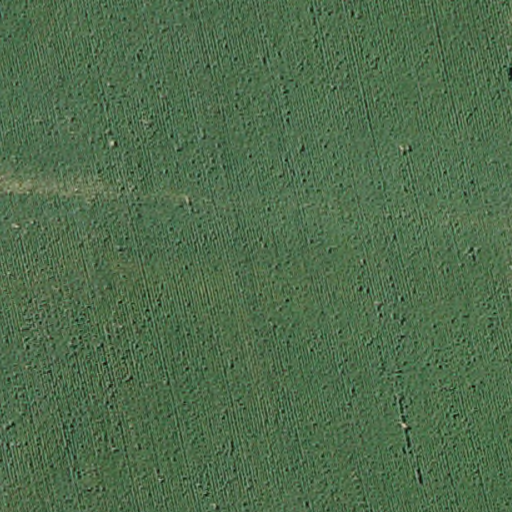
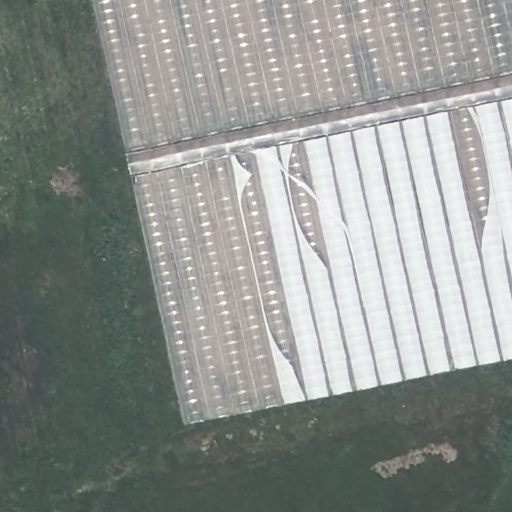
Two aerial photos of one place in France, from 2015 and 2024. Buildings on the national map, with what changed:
new [(186,427),(94,0),(512,0),(512,361),(186,427)]

